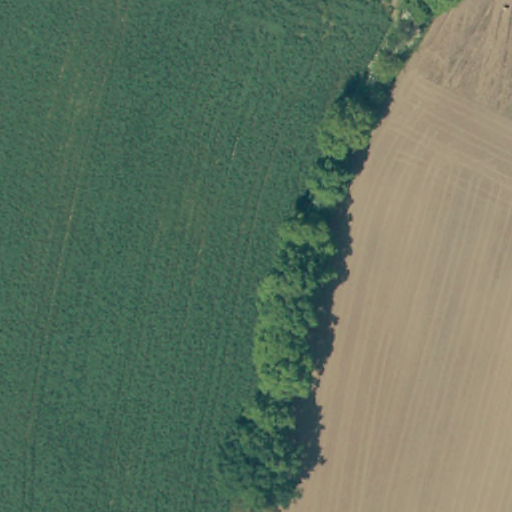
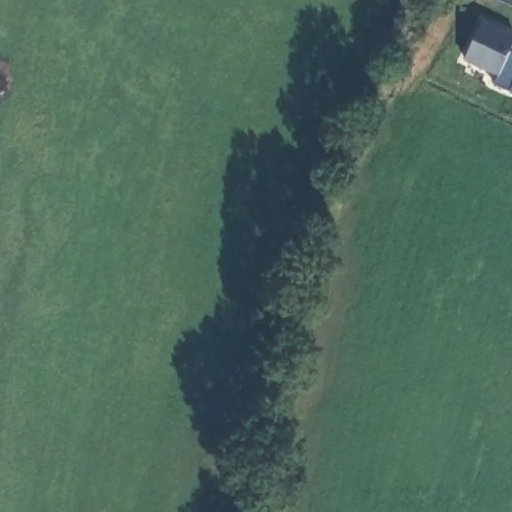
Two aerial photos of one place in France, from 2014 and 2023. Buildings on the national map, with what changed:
new [(512,50),(512,51),(512,92),(493,84),(497,75),(464,60),(482,19),(512,33),(512,50)]

